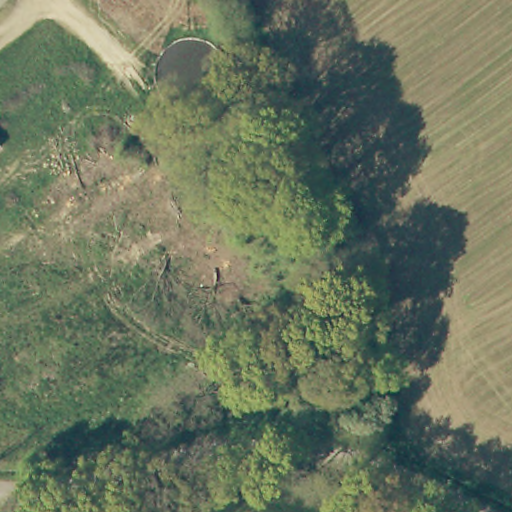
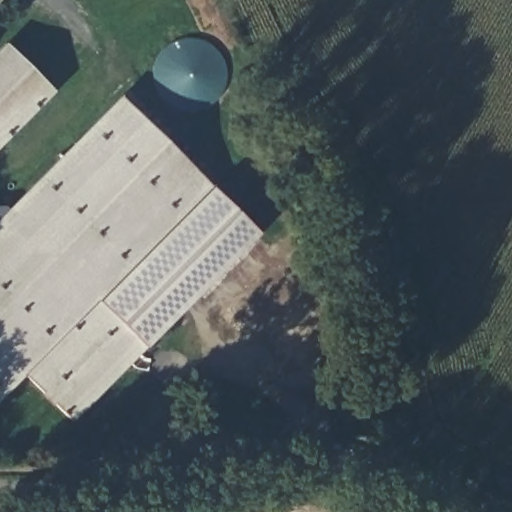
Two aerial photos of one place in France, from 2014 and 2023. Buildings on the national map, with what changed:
unchanged [(0,138),(0,39),(49,87),(0,138)]
new [(147,348),(146,350),(75,421),(55,403),(53,406),(41,394),(44,391),(26,375),(0,404),(0,219),(120,96),(260,232),(147,348)]

